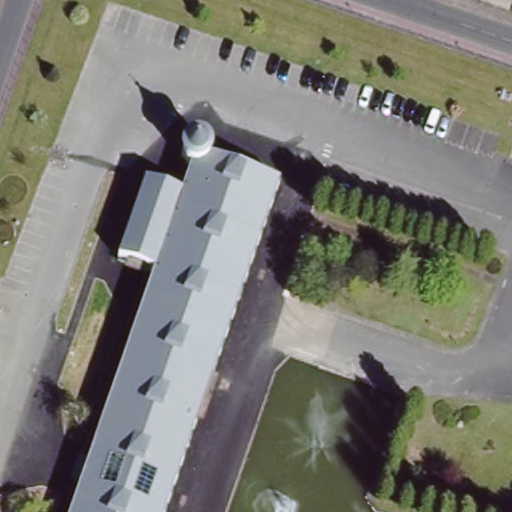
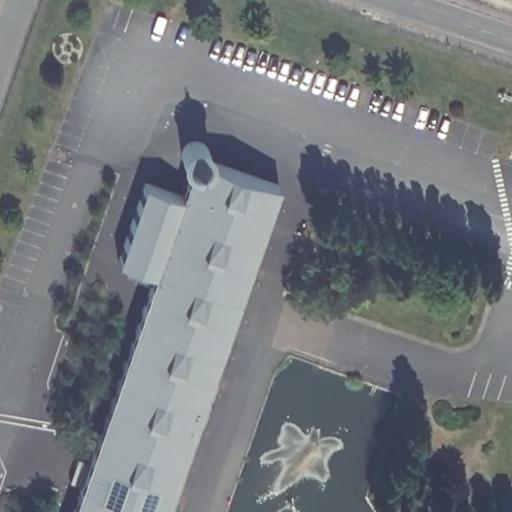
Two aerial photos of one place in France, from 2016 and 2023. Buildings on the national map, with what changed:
unchanged [(160,272),(123,260),(151,182),(188,196),(197,174),(193,172),(190,169),(187,165),(185,161),(186,155),(188,150),(191,147),(195,145),(203,125),(222,131),(225,122),(294,143),(165,512),(75,512),(158,274),(160,272)]

